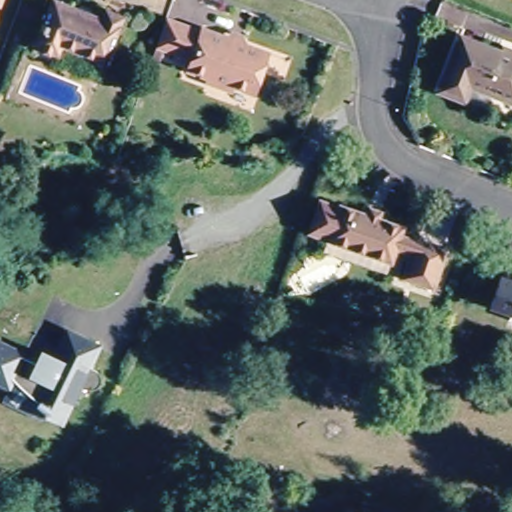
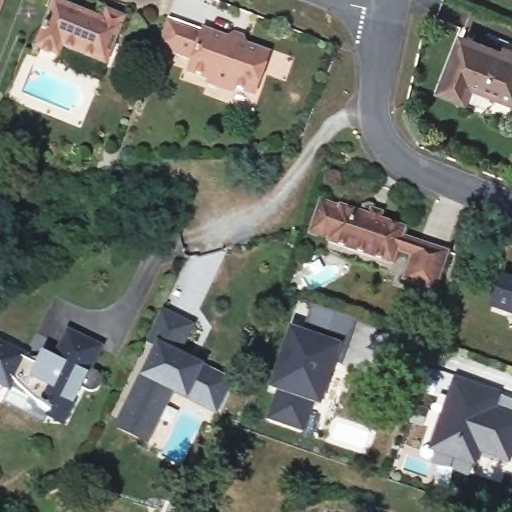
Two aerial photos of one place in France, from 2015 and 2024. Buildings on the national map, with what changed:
unchanged [(1,0),(0,3),(0,0),(1,0)]
unchanged [(84,58),(54,46),(51,56),(31,48),(50,0),(59,0),(99,16),(101,11),(118,18),(105,50),(96,73),(81,66),(84,58)]
unchanged [(267,64),(256,94),(236,86),(234,91),(208,81),(210,77),(191,70),(196,56),(157,42),(166,17),(201,30),(202,26),(235,38),(237,32),(246,35),(244,41),(264,50),(272,52),(267,64)]
unchanged [(439,92),(454,44),(456,35),(481,43),(512,52),(512,98),(491,91),(486,106),(467,101),(439,92)]
unchanged [(372,258),(327,242),(327,240),(308,234),(320,201),(339,208),(340,206),(368,216),(370,210),(381,214),(379,220),(404,229),(401,237),(446,254),(433,292),(402,280),(410,257),(396,251),(391,265),(372,258)]
unchanged [(512,312),(491,305),(501,276),(512,280),(512,312)]
new [(315,405),(303,435),(269,423),(278,393),(269,389),(289,328),(301,332),(310,306),(357,321),(347,352),(338,350),(320,405),(315,405)]
new [(140,377),(153,350),(145,344),(162,309),(195,325),(182,353),(205,364),(235,380),(217,416),(186,401),(172,394),(148,445),(113,428),(140,377)]
unchanged [(427,345),(415,341),(423,318),(435,323),(427,345)]
unchanged [(67,329),(99,344),(89,365),(87,371),(55,357),(67,329)]
unchanged [(6,349),(7,347),(25,355),(24,357),(38,363),(43,352),(55,357),(87,371),(89,365),(90,366),(91,366),(92,367),(93,368),(94,369),(94,370),(95,371),(95,373),(96,374),(96,375),(96,376),(95,377),(95,379),(94,380),(94,381),(93,382),(92,383),(91,384),(90,385),(89,385),(87,385),(86,386),(84,386),(83,386),(82,385),(81,385),(66,418),(26,390),(30,381),(16,375),(11,388),(0,383),(0,346),(6,349)]
new [(430,452),(456,379),(498,394),(491,413),(512,420),(512,449),(507,464),(477,454),(472,467),(456,461),(430,452)]

